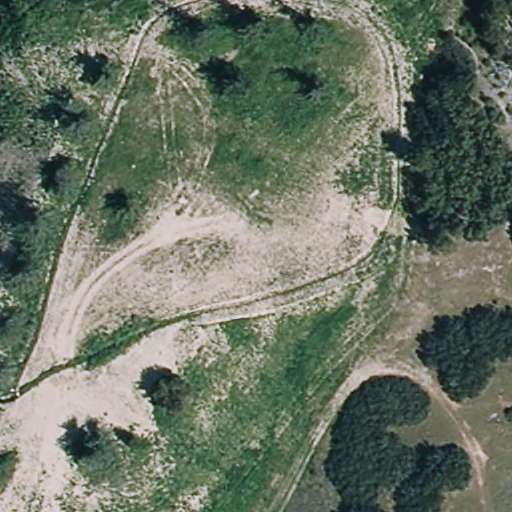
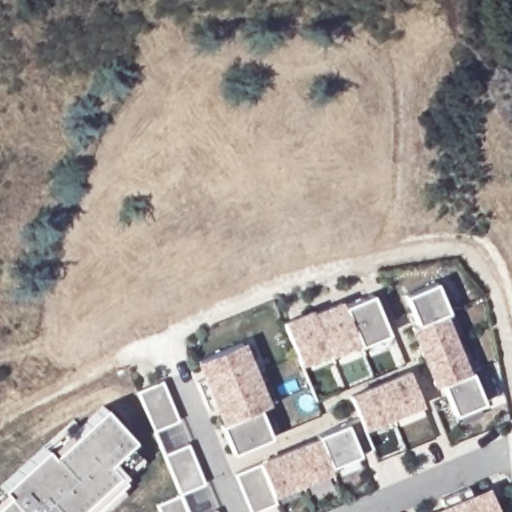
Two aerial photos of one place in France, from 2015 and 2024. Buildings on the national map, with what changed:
new [(442,289),(452,320),(447,322),(467,382),(471,381),(482,413),(452,423),(441,391),(435,393),(415,333),(420,331),(410,301),(442,289)]
new [(315,317),(316,320),(345,308),(346,312),(377,299),(391,338),(363,350),(361,347),(333,359),(331,356),(303,368),(286,329),(315,317)]
new [(211,416),(199,388),(208,384),(201,367),(204,366),(244,348),(270,411),(262,414),(274,443),(235,459),(223,430),(227,429),(220,412),(211,416)]
new [(322,444),(320,441),(362,423),(353,402),(411,377),(425,408),(365,433),(375,454),(333,472),(334,476),(275,501),(279,509),(272,512),(251,512),(238,479),(322,444)]
new [(165,387),(182,427),(157,437),(140,398),(165,387)]
new [(6,491),(51,452),(57,459),(111,412),(140,445),(134,449),(144,461),(123,479),(130,487),(101,512),(0,512),(0,509),(12,499),(6,491)]
new [(191,450),(208,489),(183,500),(166,460),(191,450)]
new [(445,506),(474,495),(478,507),(477,504),(494,497),(495,500),(500,512),(447,512),(445,506)]
new [(161,510),(183,501),(187,512),(161,512),(161,510)]

